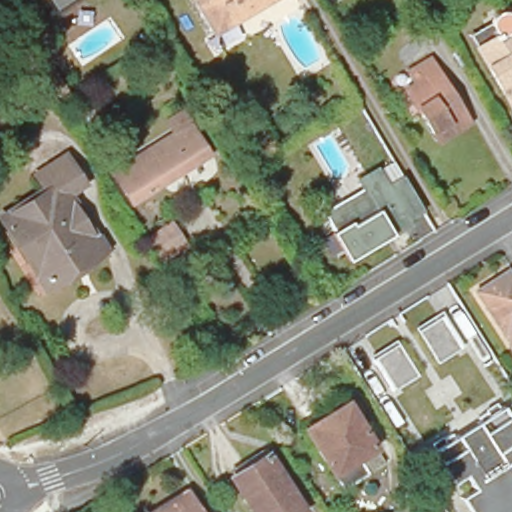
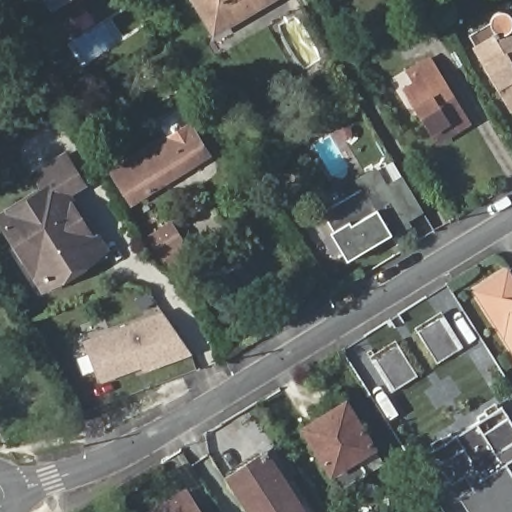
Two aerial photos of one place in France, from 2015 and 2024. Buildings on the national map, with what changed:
unchanged [(213,28),(197,0),(260,0),(252,5),(244,10),(213,28)]
unchanged [(508,112),(471,51),(463,38),(487,25),(488,22),(490,19),(492,16),(495,15),(498,14),(502,15),(505,16),(507,18),(509,20),(512,25),(512,110),(508,112)]
unchanged [(433,142),(401,89),(411,84),(403,71),(425,59),(445,92),(449,98),(463,122),(433,142)]
unchanged [(185,121),(207,155),(130,204),(108,171),(185,121)]
unchanged [(0,221),(0,212),(41,185),(31,171),(64,151),(80,179),(62,190),(92,239),(97,248),(68,266),(46,280),(39,284),(23,258),(2,225),(0,221)]
unchanged [(360,189),(356,182),(373,172),(383,190),(400,180),(401,181),(410,195),(420,211),(402,222),(405,227),(388,237),(385,231),(378,235),(382,240),(363,252),(360,247),(345,256),(320,214),(360,189)]
unchanged [(147,235),(173,219),(188,243),(164,259),(155,248),(147,235)]
unchanged [(475,306),(506,285),(512,294),(512,364),(475,306)]
new [(142,367),(99,383),(84,340),(162,311),(193,354),(144,372),(142,367)]
unchanged [(442,315),(462,347),(436,363),(416,331),(442,315)]
unchanged [(396,343),(416,375),(390,391),(370,359),(396,343)]
unchanged [(342,491),(331,474),(302,429),(327,413),(325,408),(323,407),(323,405),(322,403),(323,401),(325,398),(325,397),(326,396),(328,395),(330,395),(332,394),(334,395),(335,395),(337,396),(339,398),(342,403),(345,402),(374,447),(358,457),(368,474),(342,491)]
unchanged [(444,444),(441,440),(451,434),(453,438),(479,421),(476,417),(486,411),(488,415),(501,406),(512,423),(512,459),(506,463),(512,471),(512,512),(469,512),(457,493),(451,484),(431,453),(444,444)]
unchanged [(269,455),(266,457),(302,512),(252,512),(229,474),(266,451),(269,455)]
unchanged [(195,507),(198,512),(151,512),(185,491),(195,507)]

